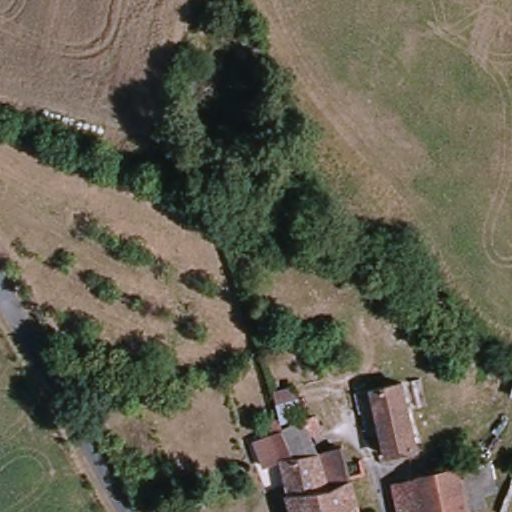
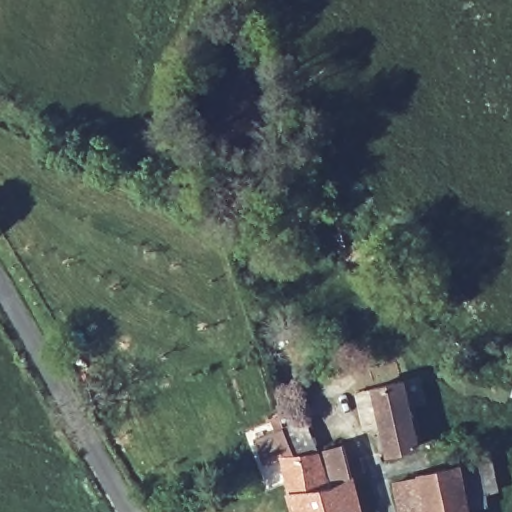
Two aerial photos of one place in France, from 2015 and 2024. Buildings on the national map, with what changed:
unchanged [(372,391),(401,384),(416,448),(387,457),(375,405),(372,391)]
unchanged [(281,434),(289,460),(319,452),(339,447),(348,477),(356,497),(361,512),(294,512),(276,460),(269,436),(281,434)]
unchanged [(429,512),(421,475),(456,465),(466,503),(432,512),(429,512)]
unchanged [(421,475),(429,512),(396,512),(391,481),(421,475)]
unchanged [(469,512),(432,512),(466,503),(469,512)]

